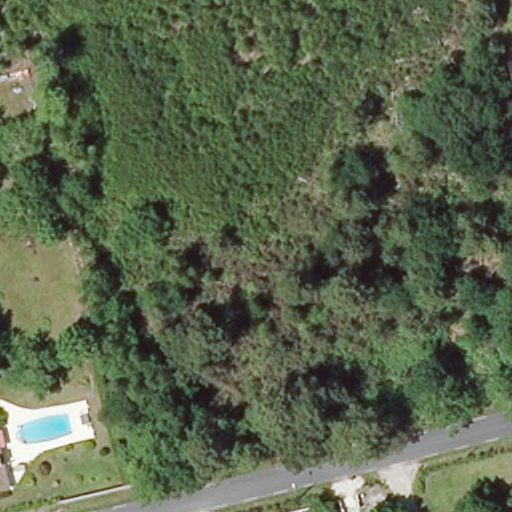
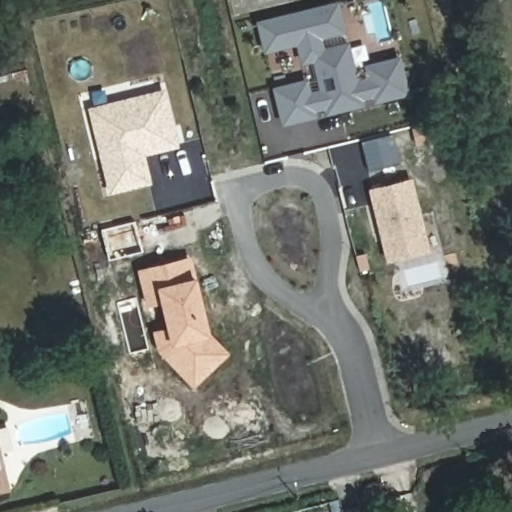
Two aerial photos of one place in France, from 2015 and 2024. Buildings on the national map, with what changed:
new [(339,4),(346,31),(321,36),(324,50),(349,44),(358,83),(373,79),(369,66),(401,59),(408,91),(378,99),(376,93),(362,97),(363,103),(330,111),(329,105),(314,109),(315,114),(287,122),(278,89),(307,81),(310,94),(325,90),(317,58),(305,61),(300,41),(269,49),(262,23),(339,4)]
new [(150,181),(114,190),(94,110),(121,103),(124,116),(141,111),(138,99),(165,91),(178,144),(151,151),(144,153),(150,181)]
new [(393,263),(391,252),(376,192),(414,183),(428,243),(431,254),(393,263)]
new [(147,307),(138,269),(191,256),(212,334),(230,353),(194,388),(159,351),(153,332),(168,327),(162,304),(147,307)]
unchanged [(0,431),(14,488),(0,491),(0,431)]

